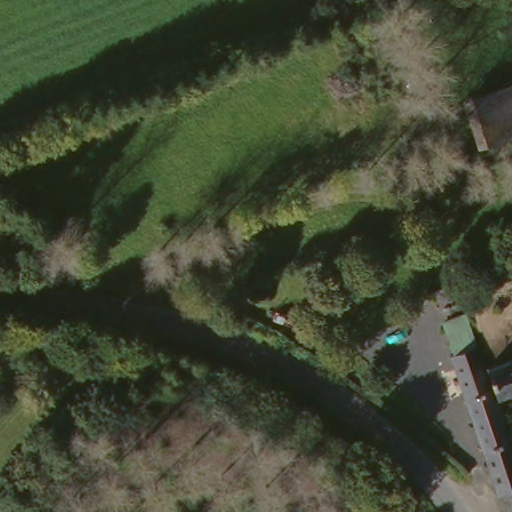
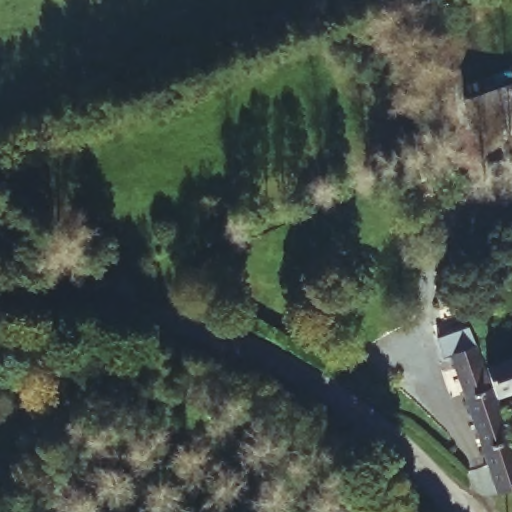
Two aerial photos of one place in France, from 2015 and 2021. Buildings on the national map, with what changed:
unchanged [(512,86),(512,138),(480,150),(464,102),(512,86)]
unchanged [(488,396),(491,394),(493,399),(504,435),(478,446),(463,404),(442,345),(466,336),(488,396)]
unchanged [(493,399),(491,394),(484,373),(512,362),(512,391),(493,399)]
unchanged [(496,498),(478,446),(504,435),(512,460),(512,494),(496,498)]

